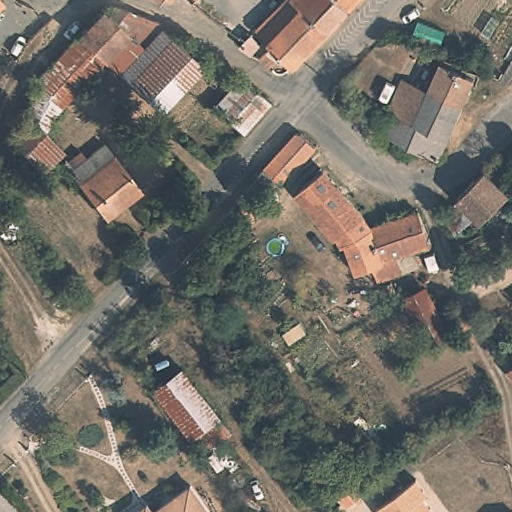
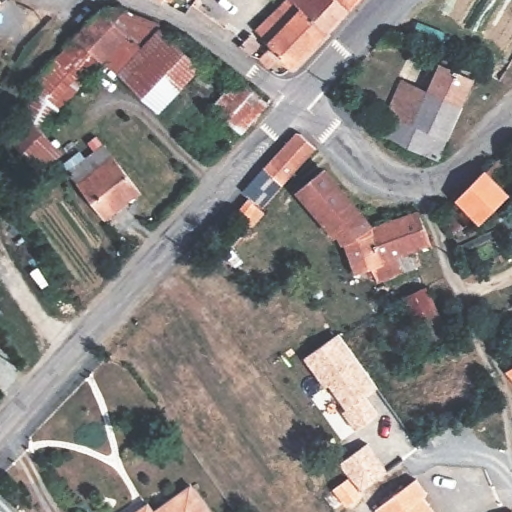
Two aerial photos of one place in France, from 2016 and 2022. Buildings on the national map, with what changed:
unchanged [(164,1),(162,0),(165,0),(164,1)]
unchanged [(289,2),(291,0),(344,0),(354,10),(293,71),(282,60),(273,69),(263,59),(276,45),(260,30),(289,2)]
unchanged [(354,10),(344,0),(363,0),(354,10)]
unchanged [(0,4),(0,1),(1,2),(0,4)]
unchanged [(41,87),(37,84),(84,35),(106,10),(110,8),(113,6),(118,6),(121,6),(125,7),(164,23),(165,24),(165,25),(164,26),(144,47),(128,34),(108,58),(65,110),(49,133),(29,110),(41,87)]
unchanged [(446,32),(440,45),(412,35),(417,21),(446,32)]
unchanged [(128,34),(144,47),(164,26),(206,66),(163,110),(108,58),(128,34)]
unchanged [(256,34),(266,45),(255,55),(244,45),(256,34)]
unchanged [(379,132),(389,112),(403,80),(416,87),(417,85),(429,91),(443,59),(451,62),(453,57),(464,62),(461,73),(473,78),(462,105),(438,160),(379,132)]
unchanged [(239,76),(269,103),(242,133),(211,104),(239,76)]
unchanged [(342,106),(341,106),(339,105),(338,104),(338,103),(338,101),(338,100),(339,99),(340,97),(341,96),(343,96),(344,97),(346,98),(347,99),(347,100),(347,102),(347,104),(346,105),(345,106),(344,106),(342,106)]
unchanged [(49,133),(65,150),(45,169),(16,137),(29,110),(49,133)]
unchanged [(361,118),(365,113),(375,121),(371,126),(361,118)]
unchanged [(251,189),(270,168),(301,134),(306,134),(321,148),(316,152),(304,166),(287,185),(266,202),(251,189)]
unchanged [(109,140),(145,186),(107,216),(71,170),(109,140)]
unchanged [(408,272),(394,279),(382,282),(375,266),(360,272),(349,243),(345,235),(342,236),(304,190),(328,170),(362,210),(375,229),(390,222),(397,219),(398,220),(423,211),(437,245),(418,252),(424,265),(408,272)]
unchanged [(509,194),(481,223),(457,199),(485,170),(499,184),(509,194)]
unchanged [(250,220),(242,213),(254,199),(262,205),(250,220)]
unchanged [(458,231),(444,215),(458,204),(473,221),(458,231)]
unchanged [(448,337),(428,346),(406,300),(425,288),(448,337)]
new [(338,333),(378,388),(366,397),(378,415),(354,431),(341,412),(345,410),(328,385),(324,388),(303,358),(338,333)]
unchanged [(507,370),(512,367),(512,377),(507,370)]
unchanged [(202,443),(166,395),(193,374),(230,422),(202,443)]
new [(368,443),(389,471),(361,492),(339,465),(368,443)]
unchanged [(416,480),(427,495),(423,497),(434,512),(378,512),(376,509),(416,480)]
unchanged [(154,512),(191,486),(209,512),(154,512)]
unchanged [(148,504),(154,512),(137,512),(140,510),(148,504)]

